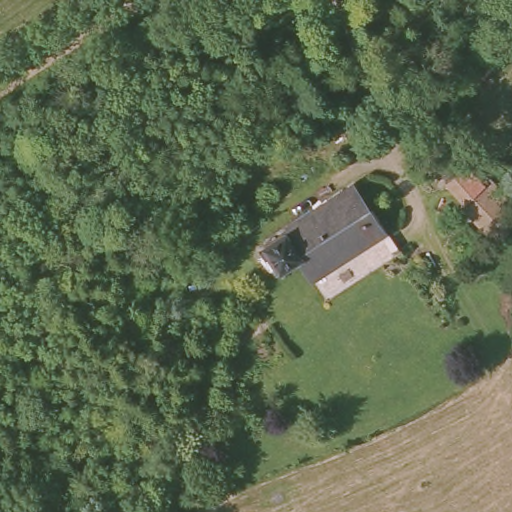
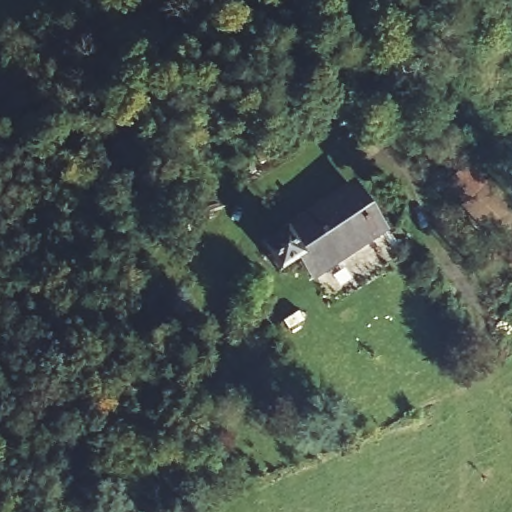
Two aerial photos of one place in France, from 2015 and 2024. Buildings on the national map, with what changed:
unchanged [(442,182),(477,162),(509,194),(499,205),(512,219),(512,233),(496,245),(442,182)]
unchanged [(374,225),(315,277),(299,260),(281,276),(261,254),(335,185),(374,225)]

